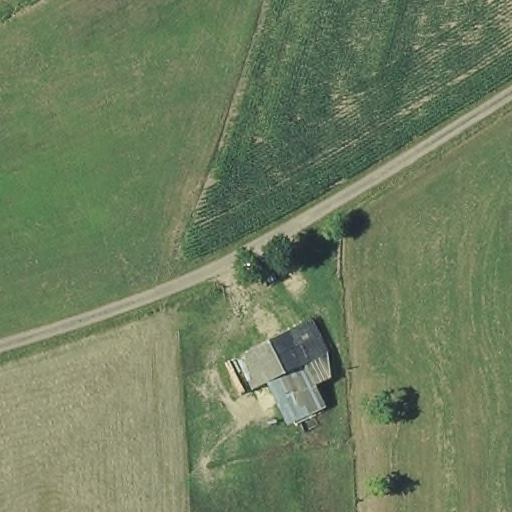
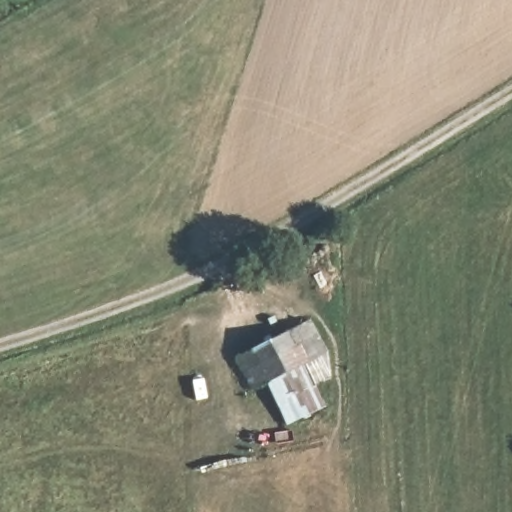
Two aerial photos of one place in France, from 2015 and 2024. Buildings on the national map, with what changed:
unchanged [(303,364),(325,407),(283,427),(262,385),(250,387),(235,354),(312,318),(327,351),(303,364)]

